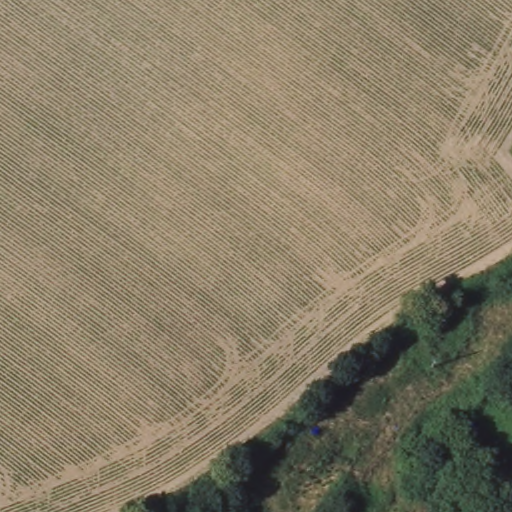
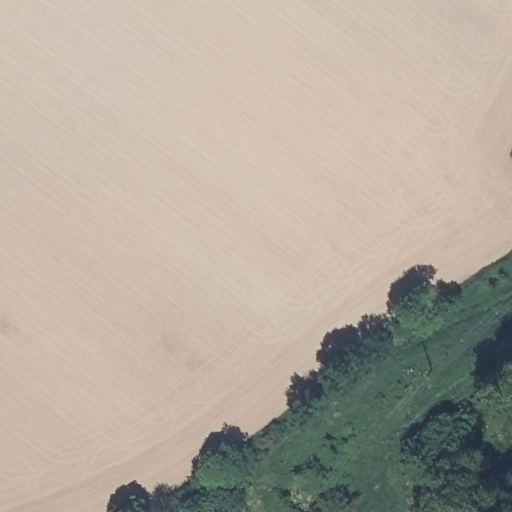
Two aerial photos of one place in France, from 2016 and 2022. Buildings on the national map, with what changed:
[]

